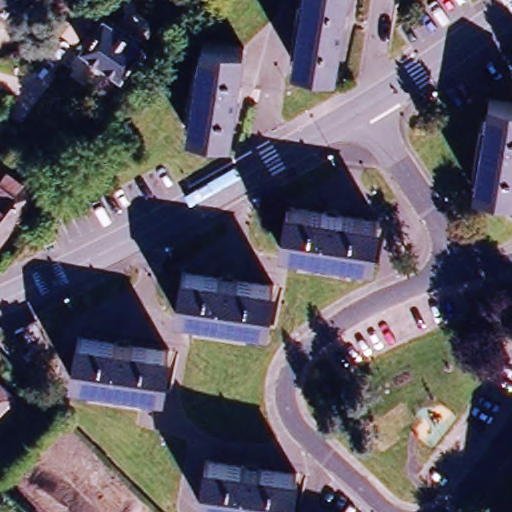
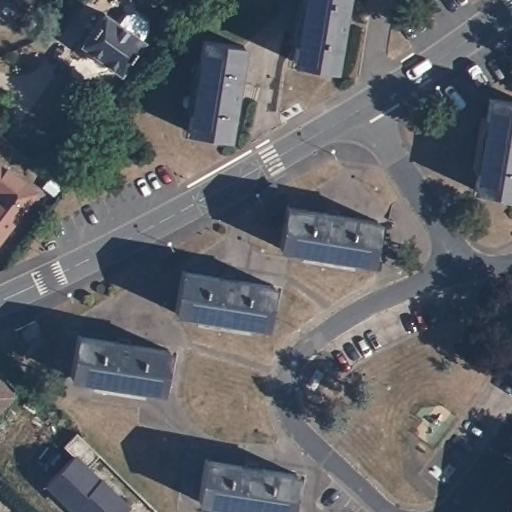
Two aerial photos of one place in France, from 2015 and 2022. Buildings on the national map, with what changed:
unchanged [(0,18),(0,0),(20,0),(5,21),(0,18)]
unchanged [(294,59),(303,0),(346,0),(336,65),(294,59)]
unchanged [(142,43),(120,73),(79,43),(103,13),(142,43)]
unchanged [(245,41),(229,133),(188,126),(203,34),(245,41)]
unchanged [(512,100),(512,194),(471,187),(487,95),(512,100)]
unchanged [(0,241),(0,165),(38,194),(0,241)]
unchanged [(378,220),(369,263),(276,248),(283,205),(378,220)]
unchanged [(275,284),(268,328),(175,314),(181,271),(275,284)]
unchanged [(44,347),(23,356),(12,332),(31,322),(44,347)]
unchanged [(163,349),(157,391),(66,376),(74,335),(163,349)]
unchanged [(0,363),(0,361),(1,362),(0,363)]
unchanged [(0,383),(13,396),(0,409),(0,383)]
new [(75,507),(70,510),(45,483),(73,455),(63,444),(77,431),(100,456),(91,462),(128,498),(126,500),(131,505),(124,512),(81,512),(75,507)]
unchanged [(295,473),(288,512),(270,512),(197,499),(203,459),(295,473)]

